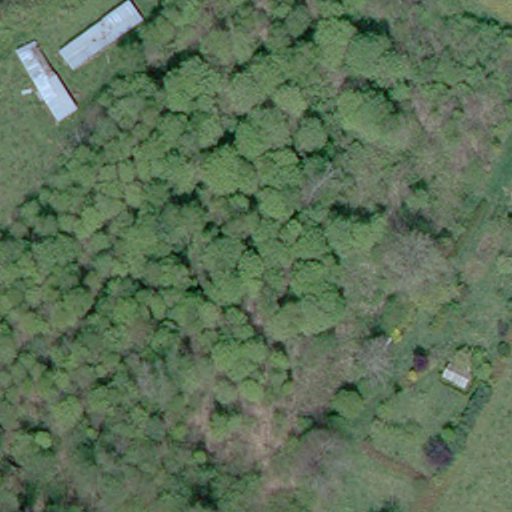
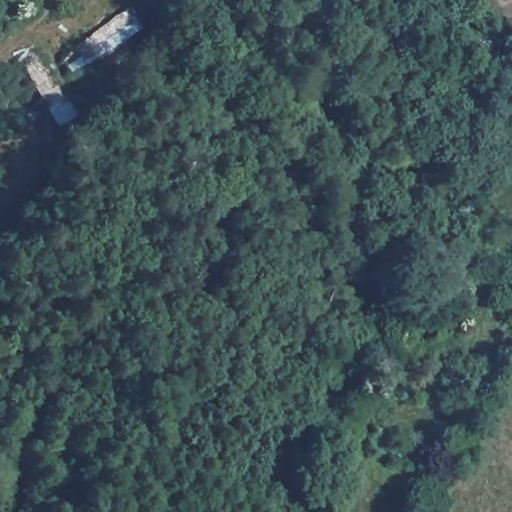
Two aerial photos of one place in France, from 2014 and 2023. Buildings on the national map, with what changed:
unchanged [(10,63),(37,48),(49,65),(122,5),(142,21),(59,85),(75,115),(52,126),(10,63)]

